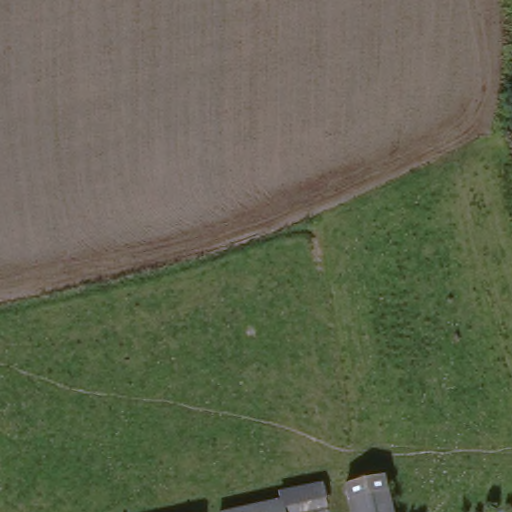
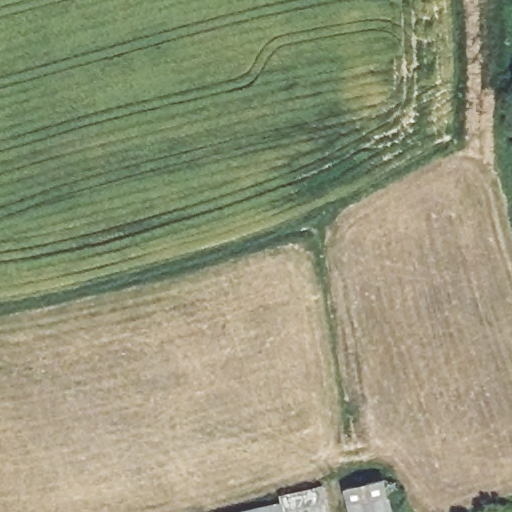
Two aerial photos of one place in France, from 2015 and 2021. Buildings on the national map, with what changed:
unchanged [(345,493),(386,485),(391,512),(348,512),(345,493)]
unchanged [(282,503),(280,496),(320,488),(325,512),(239,512),(282,503)]

